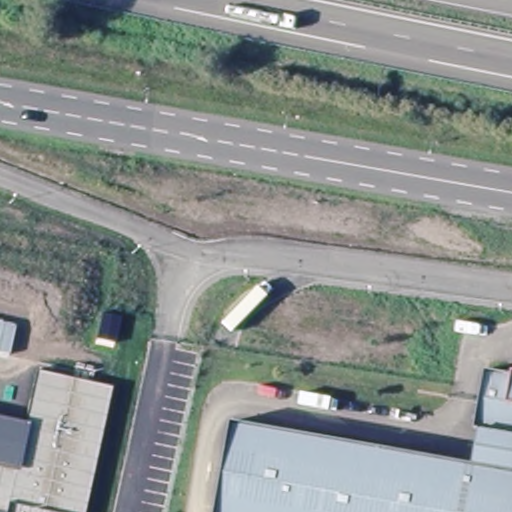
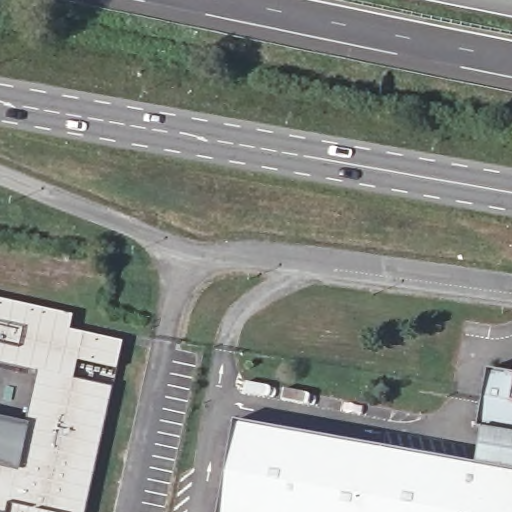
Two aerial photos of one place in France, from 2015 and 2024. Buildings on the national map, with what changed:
new [(0,363),(0,299),(72,315),(69,330),(123,342),(116,368),(77,360),(73,378),(36,370),(0,363)]
unchanged [(36,370),(112,386),(85,512),(0,512),(0,418),(26,423),(36,370)]
unchanged [(512,376),(512,437),(482,432),(477,431),(484,396),(488,372),(512,376)]
unchanged [(476,466),(512,473),(512,512),(219,512),(235,422),(476,466)]
unchanged [(512,437),(512,473),(476,466),(482,432),(512,437)]

